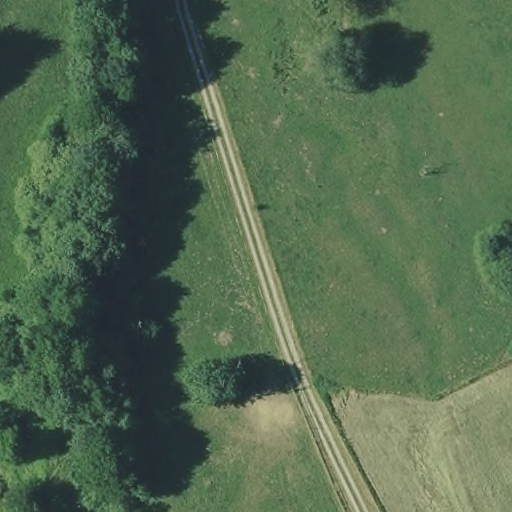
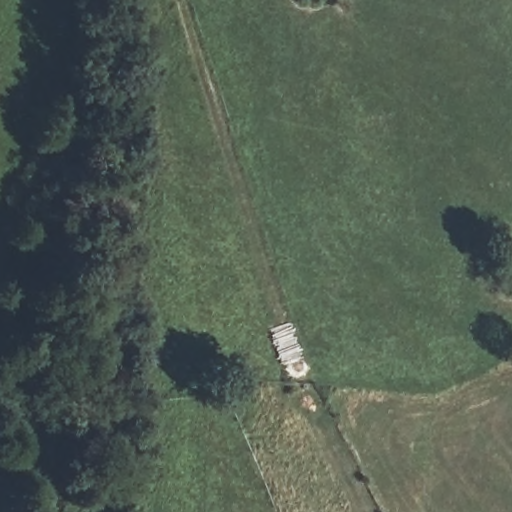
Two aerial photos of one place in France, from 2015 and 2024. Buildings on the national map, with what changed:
[]

